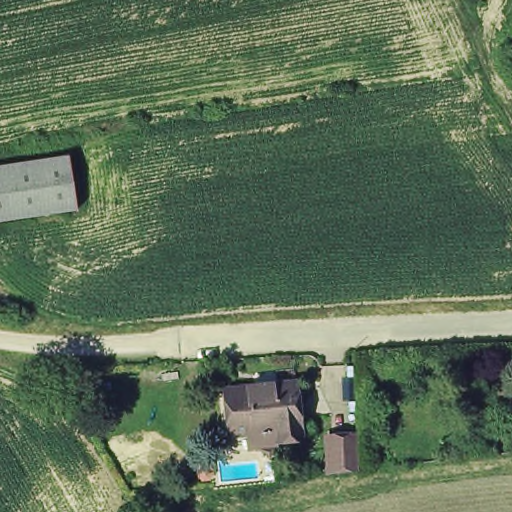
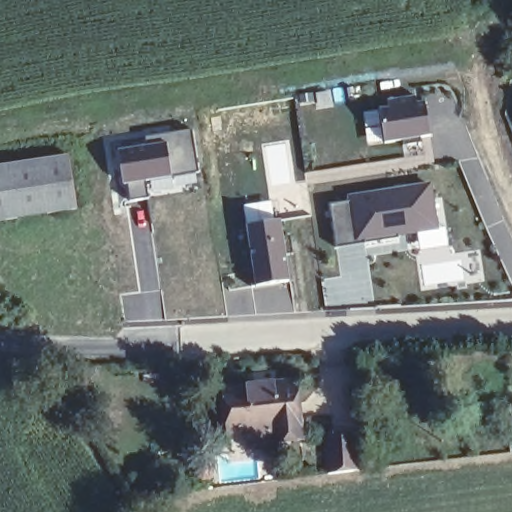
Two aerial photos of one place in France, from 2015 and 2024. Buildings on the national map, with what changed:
new [(390,107),(389,100),(416,96),(417,103),(426,102),(432,136),(422,138),(422,143),(405,146),(404,140),(386,144),(381,109),(390,107)]
new [(192,132),(200,172),(121,184),(113,147),(192,132)]
unchanged [(0,170),(67,161),(74,214),(0,224),(0,170)]
new [(360,200),(359,196),(431,185),(437,228),(399,234),(399,238),(366,243),(366,239),(338,244),(339,247),(337,248),(331,204),(360,200)]
new [(282,219),(289,283),(255,287),(244,225),(282,219)]
unchanged [(273,435),(272,430),(225,435),(220,391),(294,383),(299,432),(297,432),(298,441),(277,443),(276,434),(273,435)]
unchanged [(359,467),(364,468),(361,470),(330,472),(327,436),(357,434),(359,433),(359,467)]

